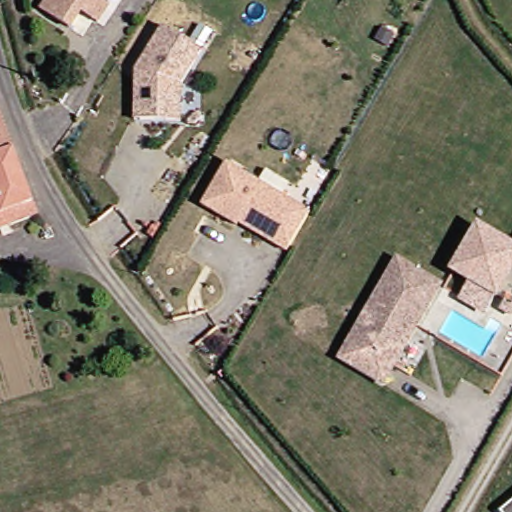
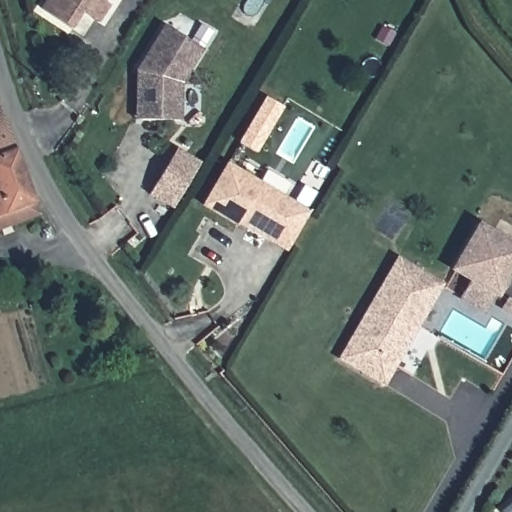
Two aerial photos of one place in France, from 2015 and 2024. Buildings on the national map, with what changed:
unchanged [(91,25),(74,13),(63,30),(34,10),(40,0),(99,0),(97,4),(102,8),(91,25)]
unchanged [(142,72),(170,27),(191,42),(205,26),(220,38),(185,87),(185,125),(145,123),(140,123),(142,72)]
unchanged [(31,205),(0,214),(0,131),(21,188),(31,205)]
new [(181,150),(204,164),(177,209),(154,195),(181,150)]
unchanged [(225,227),(194,209),(219,167),(305,217),(283,257),(274,252),(226,225),(225,227)]
unchanged [(0,230),(0,214),(31,205),(39,219),(0,230)]
unchanged [(463,281),(445,271),(471,227),(500,244),(512,251),(512,256),(512,257),(489,296),(479,313),(453,300),(463,281)]
unchanged [(390,267),(432,292),(375,390),(332,365),(390,267)]
unchanged [(512,498),(512,512),(506,512),(502,506),(512,498)]

